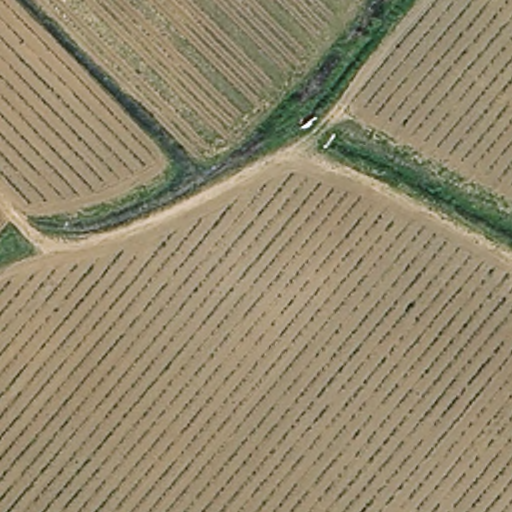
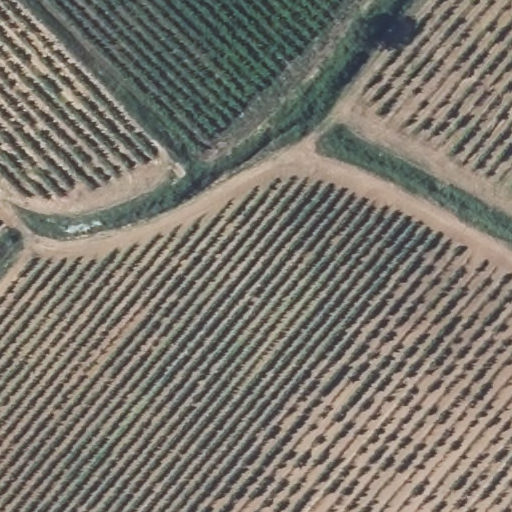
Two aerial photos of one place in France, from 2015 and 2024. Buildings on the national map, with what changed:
[]

